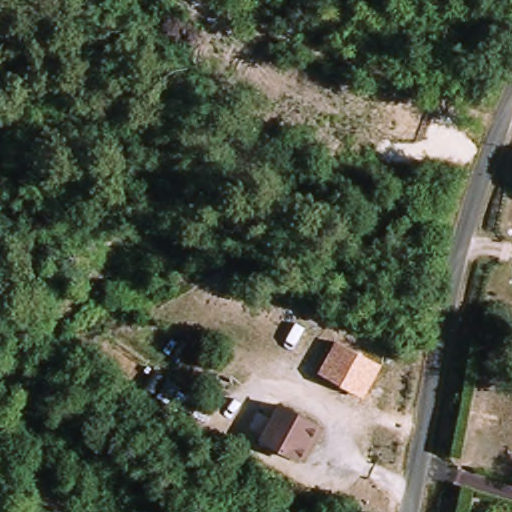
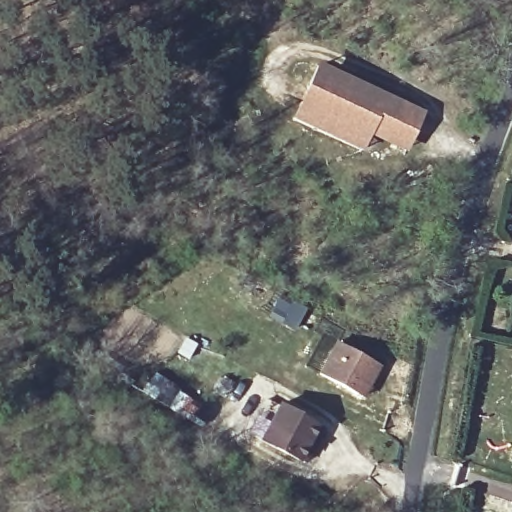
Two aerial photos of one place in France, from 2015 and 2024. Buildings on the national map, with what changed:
new [(426,112),(407,153),(370,136),(363,152),(290,120),(317,62),(426,112)]
unchanged [(381,366),(364,399),(320,374),(337,342),(381,366)]
unchanged [(306,458),(301,456),(263,437),(282,401),(320,421),(324,423),(306,458)]

